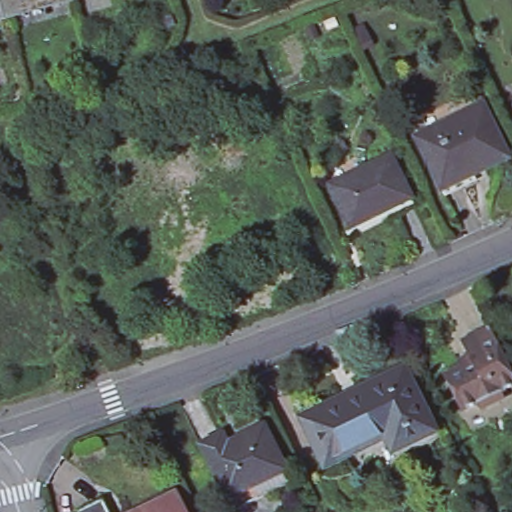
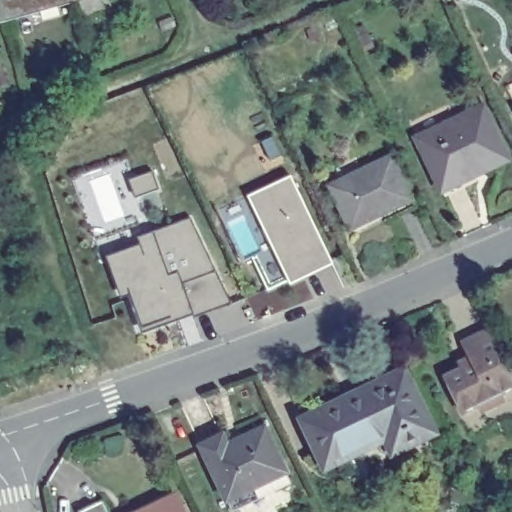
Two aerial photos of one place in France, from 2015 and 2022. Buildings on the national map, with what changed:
unchanged [(6,18),(0,20),(0,0),(1,0),(6,18)]
unchanged [(6,18),(1,0),(72,0),(73,0),(6,18)]
unchanged [(484,105),(509,156),(445,187),(420,136),(484,105)]
unchanged [(412,201),(351,231),(330,188),(391,158),(412,201)]
new [(291,287),(290,283),(269,292),(253,259),(264,254),(274,250),(273,249),(249,198),(274,187),(292,178),(332,263),(334,266),(291,287)]
new [(144,250),(146,255),(160,250),(154,233),(192,219),(233,306),(232,306),(231,304),(195,317),(191,307),(175,313),(176,318),(143,330),(130,292),(125,294),(113,261),(144,250)]
unchanged [(505,398),(483,408),(480,401),(464,408),(447,374),(475,360),(465,339),(491,328),(502,350),(512,372),(512,386),(501,391),(505,398)]
unchanged [(405,373),(434,433),(393,453),(387,440),(327,469),(304,422),(405,373)]
unchanged [(223,433),(228,442),(264,425),(291,482),(232,509),(201,443),(223,433)]
unchanged [(81,512),(80,509),(105,497),(112,512),(81,512)]
unchanged [(179,512),(143,512),(173,498),(179,512)]

